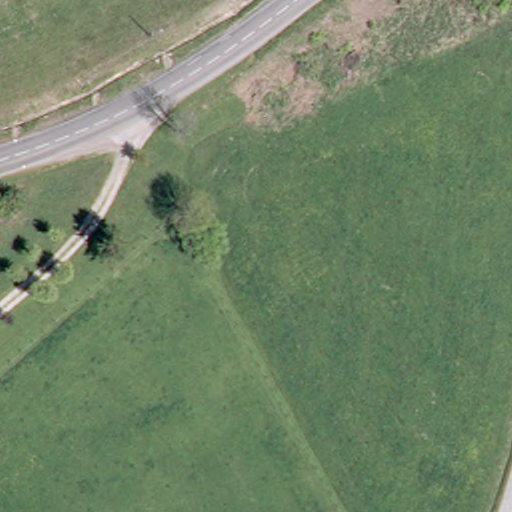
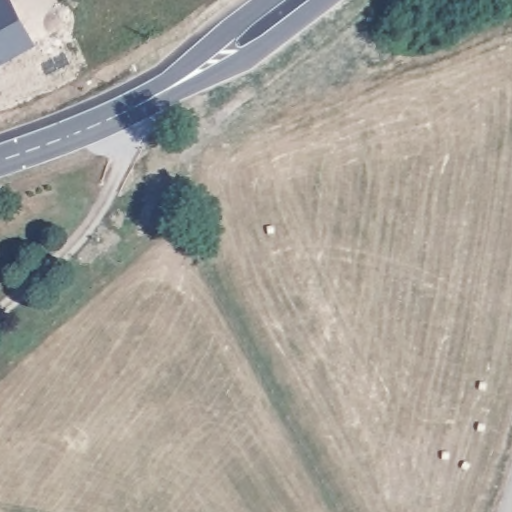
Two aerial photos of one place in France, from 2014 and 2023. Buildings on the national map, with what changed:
new [(3,60),(0,62),(0,0),(10,0),(30,36),(33,43),(3,60)]

